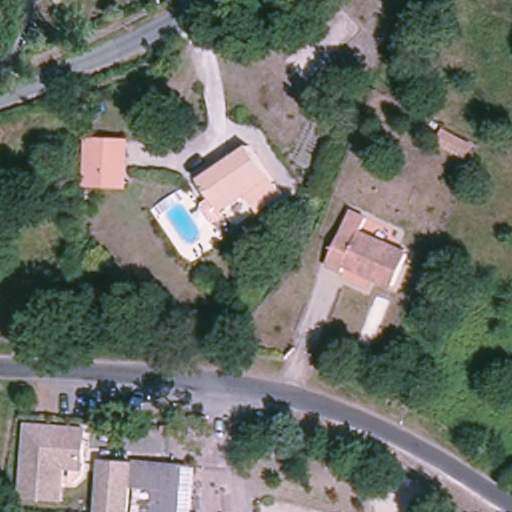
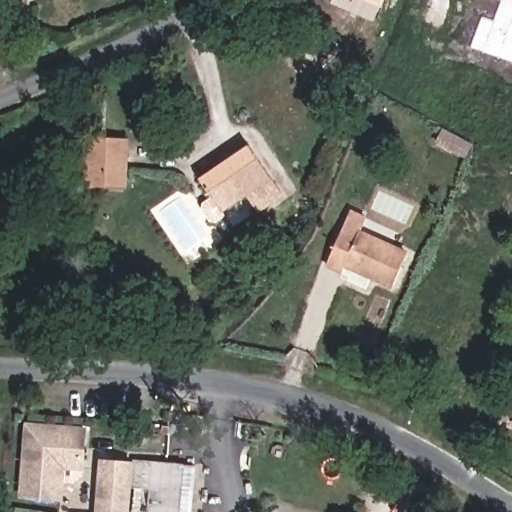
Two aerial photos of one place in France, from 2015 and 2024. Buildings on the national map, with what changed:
new [(366,0),(386,0),(383,7),(366,0)]
new [(470,47),(483,16),(494,21),(501,0),(500,0),(512,0),(512,63),(470,47)]
unchanged [(462,155),(456,151),(442,146),(448,132),(461,138),(468,142),(462,155)]
demolished [(422,147),(428,133),(441,140),(436,153),(422,147)]
unchanged [(89,140),(129,142),(129,188),(88,187),(89,140)]
unchanged [(256,147),(285,196),(262,210),(251,189),(224,207),(206,176),(256,147)]
unchanged [(406,257),(395,288),(346,267),(341,275),(325,267),(349,213),(366,221),(358,236),(406,257)]
unchanged [(61,464),(59,496),(21,493),(27,423),(85,429),(82,458),(81,466),(61,464)]
unchanged [(128,512),(98,512),(102,463),(132,466),(128,512)]
unchanged [(152,493),(133,491),(136,464),(185,468),(181,512),(150,512),(152,493)]
unchanged [(185,468),(197,469),(193,512),(181,512),(185,468)]

